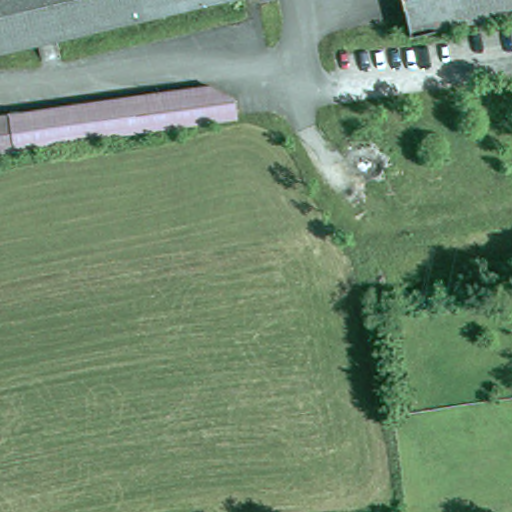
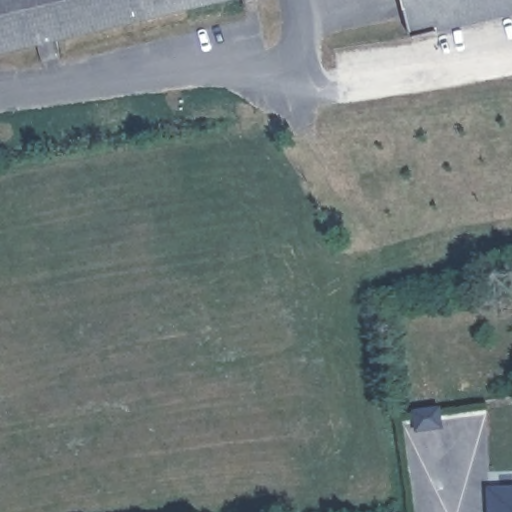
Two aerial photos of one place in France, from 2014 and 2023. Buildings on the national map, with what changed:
unchanged [(213,0),(0,51),(0,0),(213,0)]
unchanged [(408,15),(405,0),(512,0),(512,10),(412,33),(408,15)]
demolished [(211,83),(236,96),(238,114),(0,148),(0,114),(211,83)]
new [(442,406),(445,426),(420,429),(417,409),(442,406)]
new [(488,488),(512,487),(512,512),(489,512),(488,488)]

